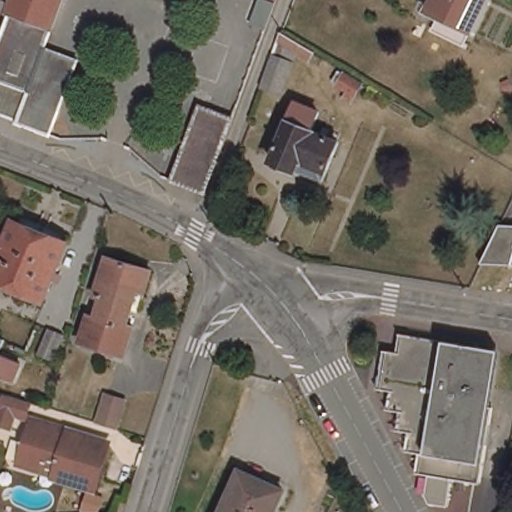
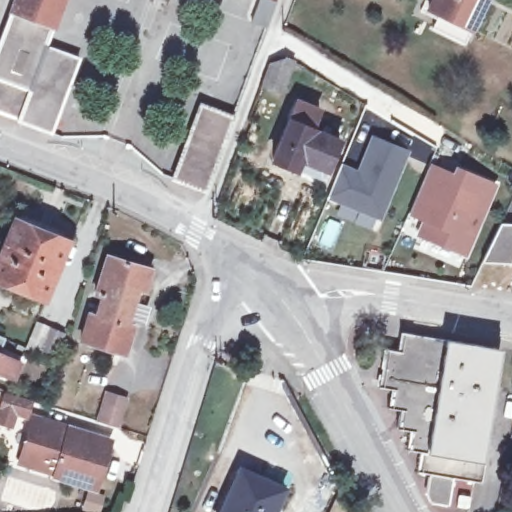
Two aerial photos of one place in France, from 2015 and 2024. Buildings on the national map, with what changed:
unchanged [(65,0),(55,27),(40,22),(13,12),(12,11),(16,0),(65,0)]
unchanged [(425,18),(433,0),(487,0),(467,39),(425,18)]
unchanged [(80,59),(62,109),(30,96),(33,89),(31,89),(17,84),(5,79),(25,25),(10,19),(9,19),(12,11),(13,12),(40,22),(55,27),(47,46),(80,59)]
unchanged [(10,19),(25,25),(5,79),(17,84),(31,89),(33,89),(30,96),(62,109),(52,134),(19,122),(20,119),(6,114),(0,112),(0,43),(9,19),(10,19)]
unchanged [(305,79),(293,71),(277,113),(257,105),(277,51),(278,51),(300,65),(310,71),(305,79)]
unchanged [(352,101),(345,97),(350,90),(334,79),(340,69),(346,73),(346,72),(364,83),(352,101)]
unchanged [(302,165),(278,155),(302,97),(325,106),(317,125),(327,129),(330,121),(342,126),(339,134),(345,136),(332,166),(329,176),(302,165)]
unchanged [(173,179),(201,104),(235,116),(207,191),(173,179)]
new [(331,197),(344,167),(362,174),(377,139),(410,153),(382,218),(331,197)]
new [(413,214),(433,167),(457,177),(460,170),(498,186),(469,255),(423,236),(429,220),(413,214)]
unchanged [(47,300),(0,281),(0,255),(15,219),(71,243),(47,300)]
unchanged [(501,223),(512,224),(512,263),(482,262),(501,223)]
unchanged [(96,319),(103,295),(96,293),(107,255),(152,269),(145,290),(138,288),(128,323),(135,325),(127,354),(82,340),(89,318),(96,319)]
unchanged [(55,359),(40,353),(51,327),(66,334),(55,359)]
unchanged [(1,334),(0,337),(0,333),(1,334)]
unchanged [(460,479),(454,506),(436,502),(432,494),(435,474),(425,473),(428,453),(415,451),(417,432),(405,429),(407,411),(395,409),(397,389),(384,387),(390,349),(403,351),(406,333),(490,347),(502,349),(493,405),(480,482),(460,479)]
unchanged [(17,357),(10,374),(0,370),(0,349),(17,357)]
unchanged [(0,425),(0,413),(1,409),(6,393),(12,395),(34,402),(30,418),(20,415),(15,430),(0,425)]
unchanged [(107,393),(127,399),(118,428),(110,425),(99,422),(107,393)]
unchanged [(110,442),(96,488),(56,475),(57,473),(27,464),(33,447),(27,445),(35,419),(110,442)]
unchanged [(276,512),(223,512),(241,470),(286,489),(276,512)]

